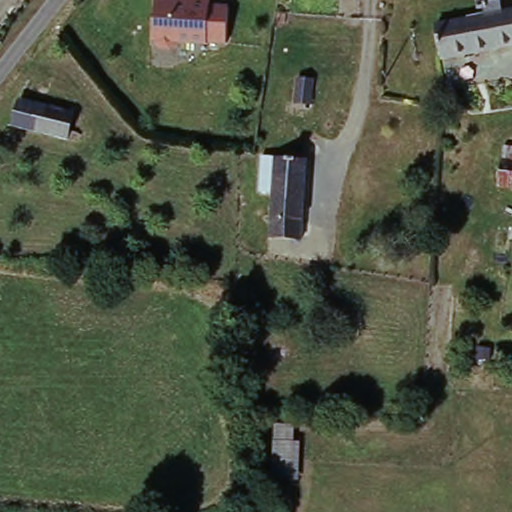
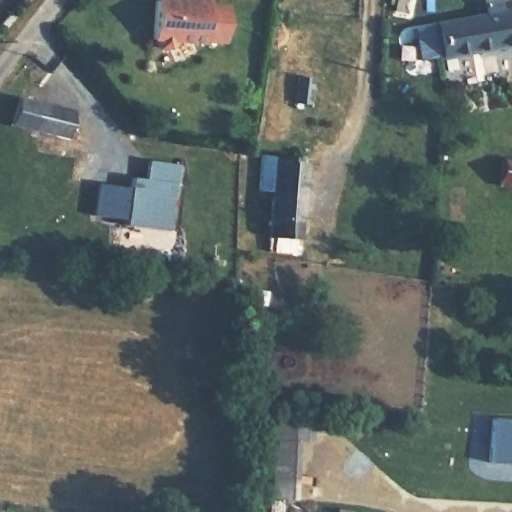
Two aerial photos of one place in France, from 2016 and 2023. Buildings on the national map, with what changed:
unchanged [(213,7),(232,8),(230,45),(154,41),(157,0),(213,0),(213,7)]
unchanged [(482,16),(480,5),(487,4),(486,3),(500,0),(502,0),(505,11),(512,10),(512,46),(446,58),(440,24),(482,16)]
unchanged [(311,83),(308,104),(292,102),(296,81),(311,83)]
unchanged [(51,104),(80,111),(76,128),(74,137),(14,123),(22,97),(51,104)]
unchanged [(312,161),(307,240),(273,237),(276,195),(261,192),(264,157),(312,161)]
unchanged [(512,162),(512,187),(503,186),(507,161),(512,162)]
new [(95,217),(99,185),(121,188),(130,189),(131,179),(146,181),(148,162),(179,166),(176,186),(174,186),(167,233),(144,230),(125,227),(126,221),(95,217)]
new [(490,420),(512,422),(512,466),(486,464),(490,420)]
new [(275,425),(295,425),(294,443),(293,480),(292,502),(273,501),(273,479),(274,442),(275,425)]

